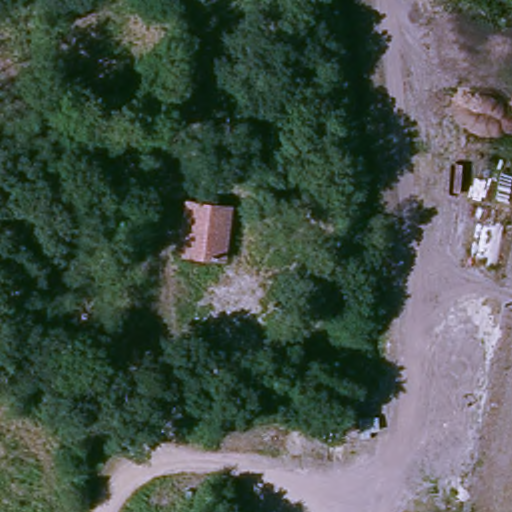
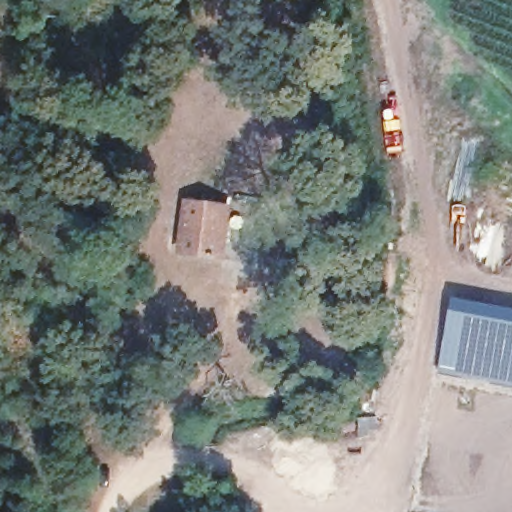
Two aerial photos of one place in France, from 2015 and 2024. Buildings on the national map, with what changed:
unchanged [(185,205),(230,209),(229,257),(184,250),(185,205)]
unchanged [(57,270),(92,264),(104,314),(62,322),(57,270)]
new [(452,299),(512,310),(512,388),(438,373),(452,299)]

